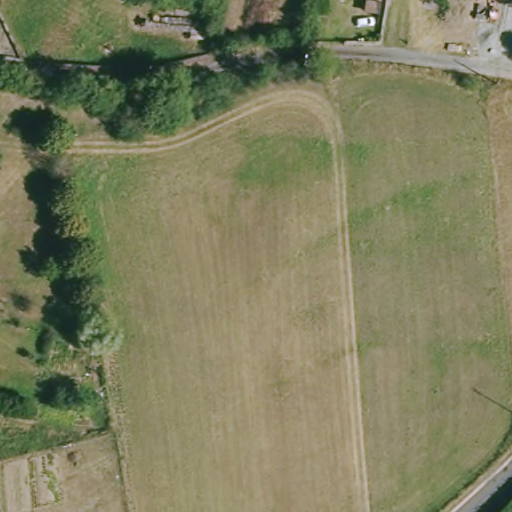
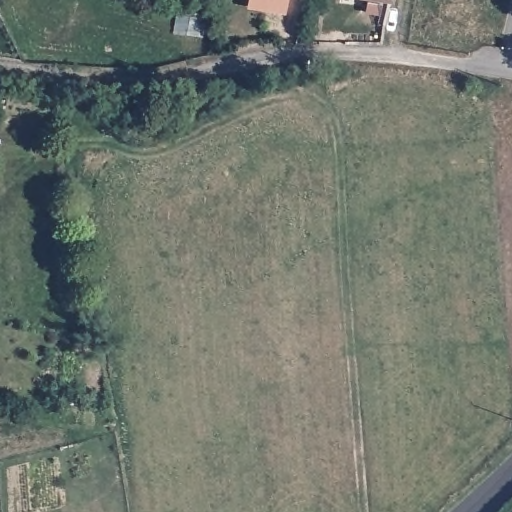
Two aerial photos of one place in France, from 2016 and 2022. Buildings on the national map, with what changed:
new [(247,0),(286,0),(285,13),(246,6),(247,0)]
unchanged [(366,13),(368,0),(382,0),(380,14),(366,13)]

